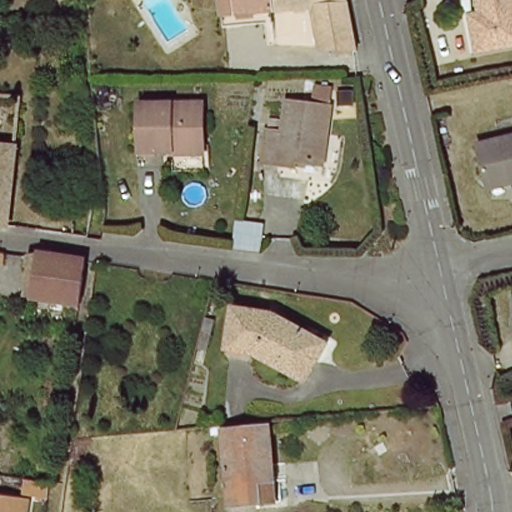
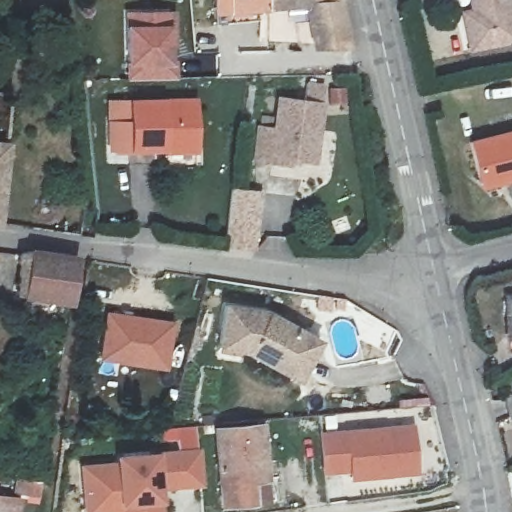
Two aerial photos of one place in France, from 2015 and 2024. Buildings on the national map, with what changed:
unchanged [(347,0),(311,3),(237,8),(235,8),(219,10),(219,0),(347,0)]
unchanged [(349,14),(356,49),(319,52),(311,3),(347,0),(349,14)]
unchanged [(512,43),(474,52),(465,14),(477,11),(475,0),(512,0),(512,43)]
new [(175,9),(178,79),(124,80),(122,9),(175,9)]
unchanged [(317,165),(291,161),(290,167),(253,162),(257,129),(274,131),(278,99),(305,103),(308,84),(328,89),(317,165)]
unchanged [(169,152),(168,149),(133,150),(133,102),(197,101),(198,142),(198,152),(169,152)]
unchanged [(472,142),(512,133),(512,179),(510,180),(483,186),(481,179),(472,142)]
unchanged [(10,142),(2,219),(0,218),(0,141),(10,142)]
unchanged [(57,173),(81,175),(82,195),(84,212),(77,236),(53,232),(57,173)]
unchanged [(77,258),(72,299),(26,294),(32,253),(77,258)]
unchanged [(510,298),(512,297),(512,340),(509,340),(510,298)]
unchanged [(295,377),(253,356),(216,347),(224,308),(262,315),(315,341),(295,377)]
new [(105,311),(177,321),(167,371),(97,360),(105,311)]
unchanged [(226,507),(221,429),(234,428),(270,425),(275,504),(256,505),(226,507)]
new [(390,475),(352,477),(352,469),(325,471),(323,435),(413,428),(416,458),(416,472),(390,475)]
new [(93,512),(87,512),(86,498),(85,466),(120,464),(119,457),(198,451),(200,483),(158,486),(159,498),(161,512),(123,512),(123,510),(93,512)]
unchanged [(41,494),(23,493),(17,492),(18,477),(25,478),(43,479),(41,494)]
unchanged [(19,498),(17,512),(0,512),(0,495),(19,498)]

